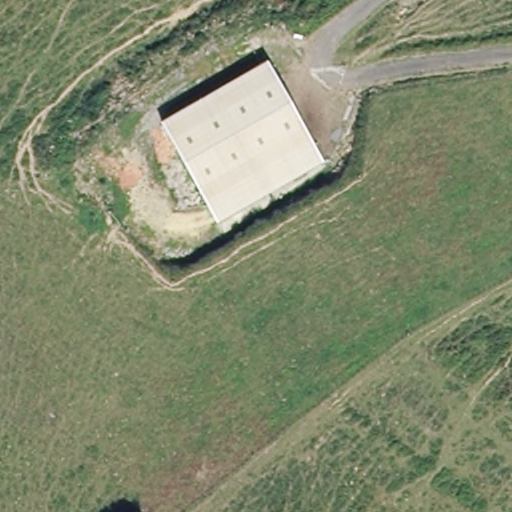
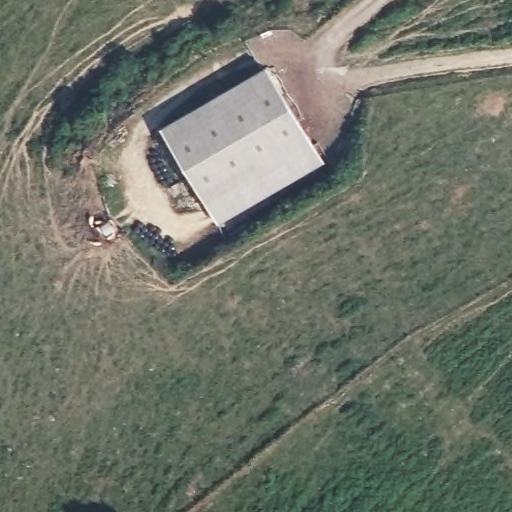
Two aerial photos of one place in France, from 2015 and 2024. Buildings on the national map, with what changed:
unchanged [(207,207),(163,126),(269,67),(313,147),(207,207)]
unchanged [(321,163),(215,223),(207,207),(313,147),(321,163)]

